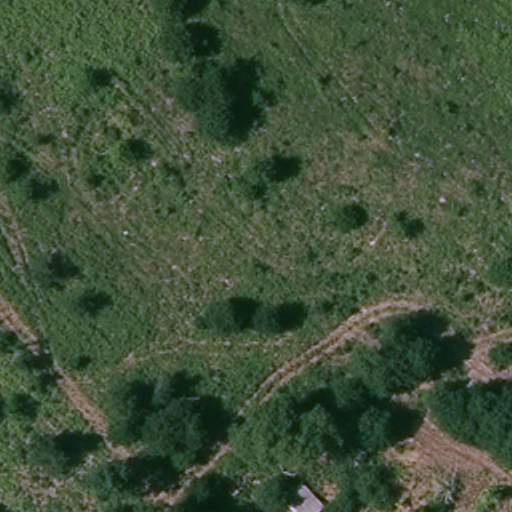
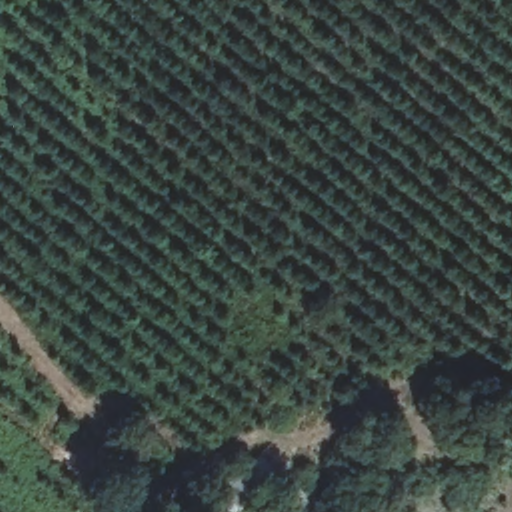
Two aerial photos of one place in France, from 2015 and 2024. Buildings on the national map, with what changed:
unchanged [(321,512),(270,512),(303,483),(326,508),(321,512)]

